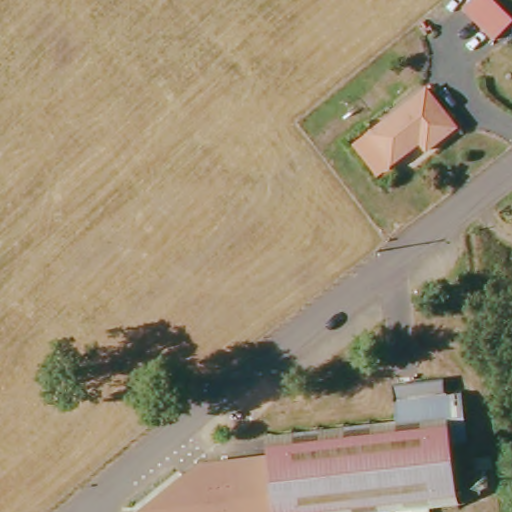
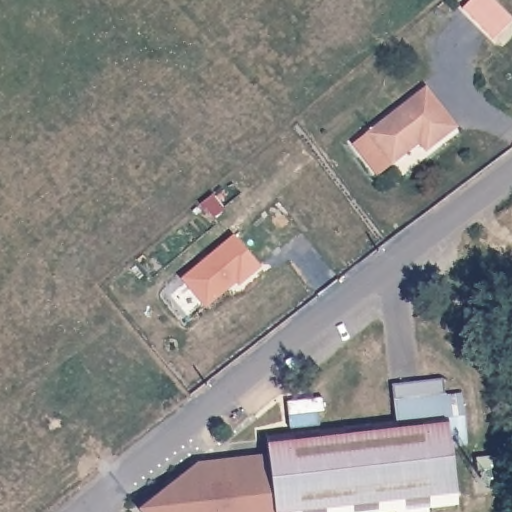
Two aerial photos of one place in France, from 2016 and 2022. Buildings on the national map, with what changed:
unchanged [(354,142),(368,131),(426,86),(454,123),(423,146),(416,135),(409,140),(410,148),(390,162),(377,173),(354,142)]
new [(234,234),(261,269),(238,286),(235,283),(205,308),(180,279),(234,234)]
unchanged [(267,440),(390,425),(387,387),(439,382),(441,395),(458,395),(463,445),(446,448),(452,508),(421,512),(274,512),(267,440)]
unchanged [(274,512),(139,512),(137,509),(195,461),(269,456),(274,512)]

